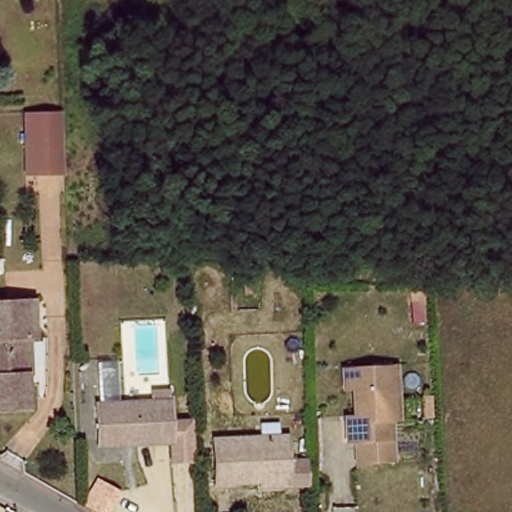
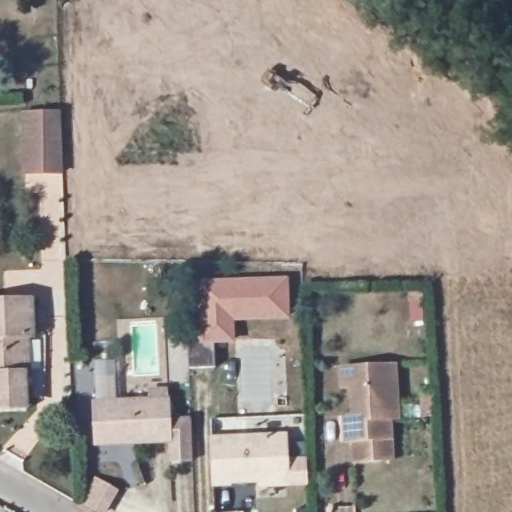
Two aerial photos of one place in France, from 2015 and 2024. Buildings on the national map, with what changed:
unchanged [(18,162),(16,121),(54,120),(56,181),(33,182),(18,183),(18,162)]
new [(231,318),(232,339),(206,341),(202,286),(286,282),(288,317),(231,318)]
unchanged [(0,303),(36,302),(36,340),(29,340),(32,375),(27,375),(28,405),(28,412),(0,412),(0,303)]
unchanged [(405,393),(389,394),(390,412),(398,412),(398,455),(365,455),(364,435),(355,434),(354,409),(360,407),(360,382),(350,381),(350,360),(404,360),(405,393)]
unchanged [(95,440),(92,405),(149,401),(149,391),(168,391),(168,401),(170,421),(170,442),(166,442),(132,445),(95,446),(95,440)]
unchanged [(170,442),(170,421),(192,420),(194,465),(167,466),(166,442),(170,442)]
unchanged [(232,480),(232,483),(216,483),(215,436),(288,432),(289,458),(316,457),(316,483),(289,484),(289,479),(232,480)]

